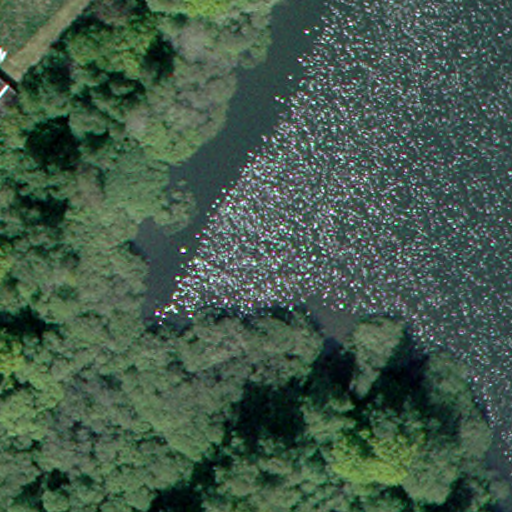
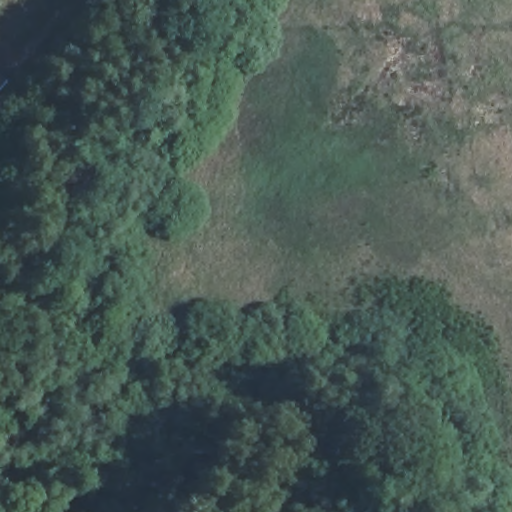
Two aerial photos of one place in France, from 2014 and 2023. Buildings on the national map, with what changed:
unchanged [(0,69),(18,85),(0,109),(0,69)]

